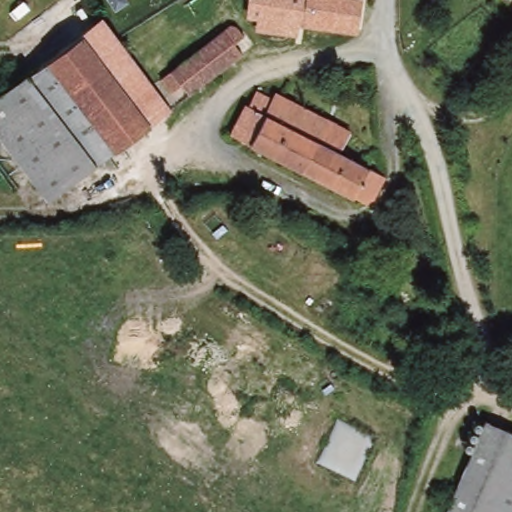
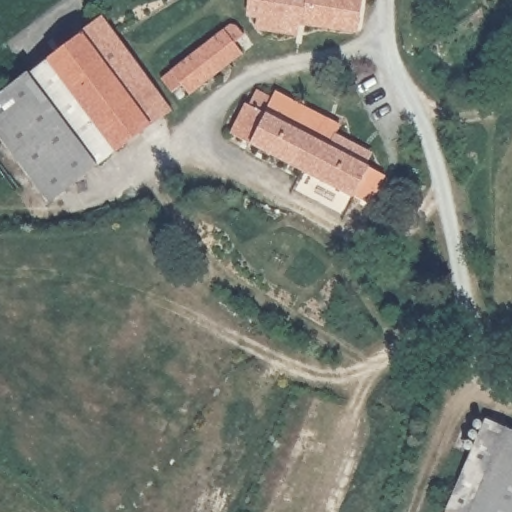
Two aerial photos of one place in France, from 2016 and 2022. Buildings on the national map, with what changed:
unchanged [(361,27),(249,15),(253,13),(254,0),(364,0),(361,27)]
unchanged [(188,97),(180,88),(171,94),(160,80),(225,27),(232,21),(234,25),(244,38),(234,45),(240,55),(188,97)]
unchanged [(169,112),(94,167),(42,107),(40,105),(23,81),(89,30),(98,23),(149,89),(169,112)]
unchanged [(40,105),(42,107),(94,167),(75,181),(34,188),(0,144),(0,98),(23,81),(40,105)]
unchanged [(369,205),(230,135),(245,107),(250,109),(255,92),(272,100),(274,95),(357,136),(347,158),(388,178),(383,188),(373,207),(369,205)]
unchanged [(443,512),(478,419),(512,433),(512,512),(443,512)]

